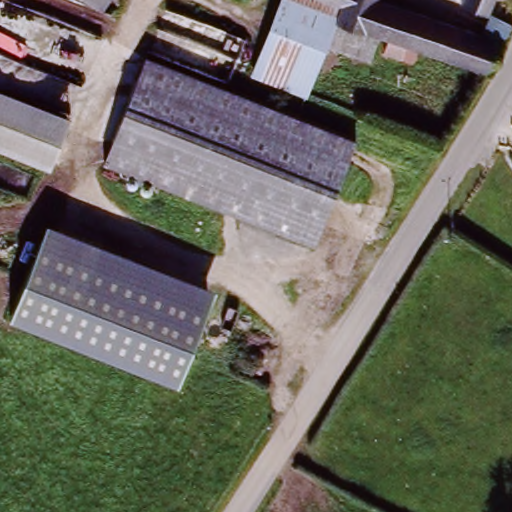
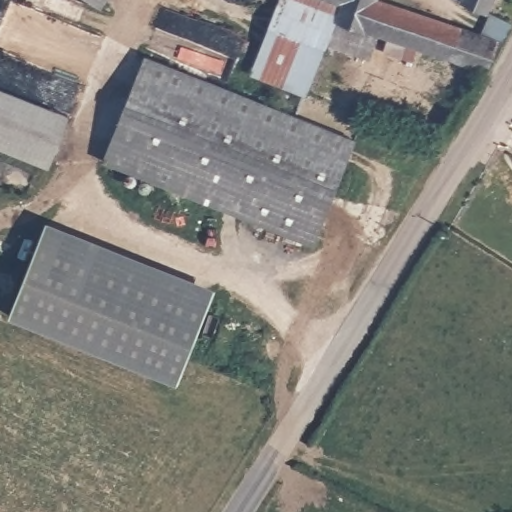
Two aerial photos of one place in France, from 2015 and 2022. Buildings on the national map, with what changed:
unchanged [(87,0),(113,0),(105,12),(87,0)]
unchanged [(382,53),(389,36),(383,34),(370,63),(329,46),(313,102),(251,76),(279,0),(383,0),(483,41),(489,29),(486,27),(490,16),(511,25),(500,48),(485,76),(460,65),(451,62),(428,52),(421,49),(414,67),(382,53)]
unchanged [(463,3),(465,0),(494,0),(487,14),(463,3)]
unchanged [(105,168),(141,58),(320,116),(359,128),(355,138),(320,241),(105,168)]
unchanged [(49,166),(0,147),(0,89),(70,118),(49,166)]
unchanged [(40,234),(208,288),(194,336),(191,344),(182,371),(13,311),(27,270),(30,263),(40,234)]

